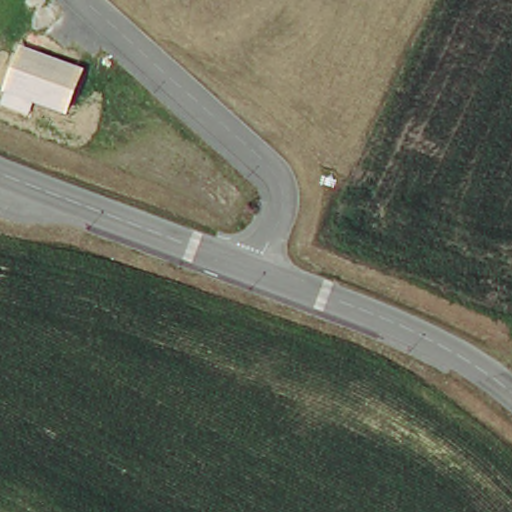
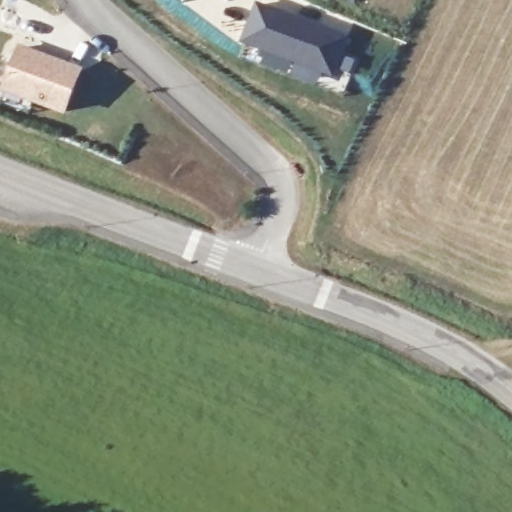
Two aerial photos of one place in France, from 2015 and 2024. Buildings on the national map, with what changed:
new [(259,63),(263,53),(238,43),(254,0),(259,0),(318,19),(321,10),(356,25),(347,53),(356,57),(349,75),(343,72),(340,83),(322,75),(317,86),(259,63)]
unchanged [(85,68),(68,115),(33,104),(29,114),(0,104),(5,93),(3,92),(20,45),(85,68)]

